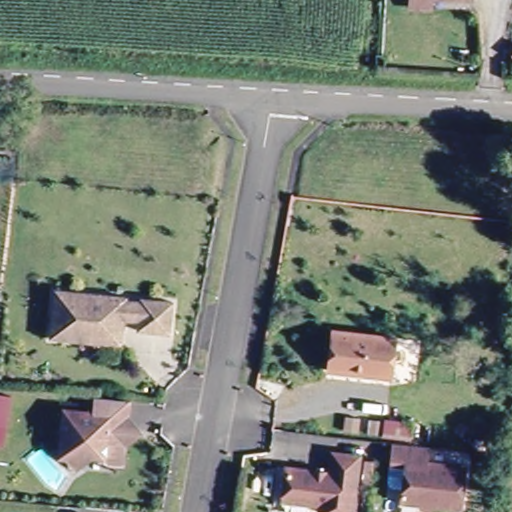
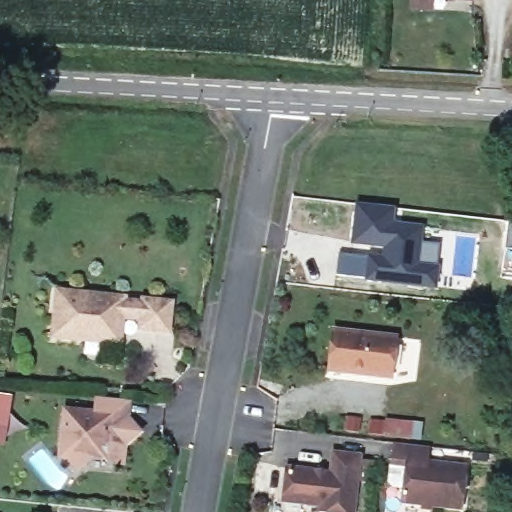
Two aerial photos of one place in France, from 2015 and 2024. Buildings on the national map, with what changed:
new [(340,251),(378,254),(380,247),(350,242),(355,201),(396,206),(394,220),(424,224),(422,240),(440,242),(436,287),(411,283),(412,278),(384,275),(383,279),(336,273),(340,251)]
unchanged [(126,341),(87,337),(55,334),(60,286),(131,293),(131,296),(146,297),(146,295),(178,297),(175,330),(143,327),(144,317),(129,316),(126,341)]
unchanged [(383,375),(328,369),(332,329),(394,336),(392,358),(390,376),(383,375)]
new [(12,397),(9,415),(5,435),(3,447),(0,446),(0,395),(12,397)]
unchanged [(126,418),(138,432),(123,445),(121,463),(104,461),(99,456),(89,455),(75,467),(60,448),(64,411),(94,414),(95,398),(128,401),(126,418)]
unchanged [(463,506),(401,499),(402,486),(393,485),(389,481),(393,441),(430,445),(429,461),(467,465),(463,506)]
unchanged [(354,512),(335,512),(320,511),(321,504),(282,500),(285,466),(331,471),(333,452),(360,455),(354,512)]

